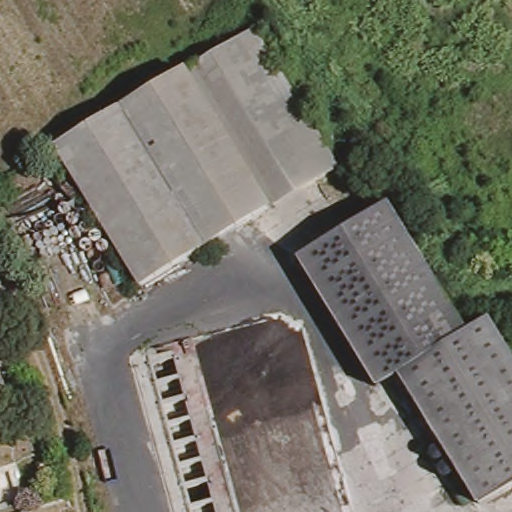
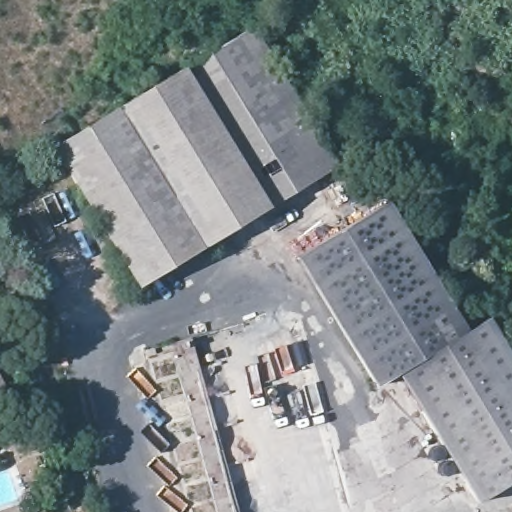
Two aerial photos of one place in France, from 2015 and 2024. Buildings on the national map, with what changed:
unchanged [(254,31),(336,168),(267,208),(185,71),(254,31)]
unchanged [(128,287),(50,151),(185,71),(267,208),(128,287)]
unchanged [(362,384),(289,262),(388,202),(465,331),(486,318),(512,362),(512,481),(470,505),(389,368),(362,384)]
unchanged [(10,394),(0,399),(0,375),(10,394)]

